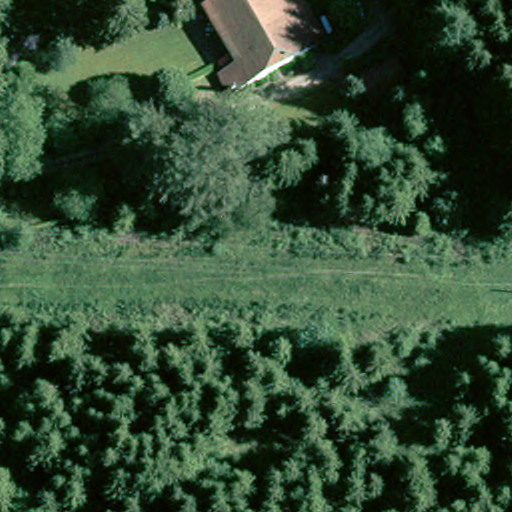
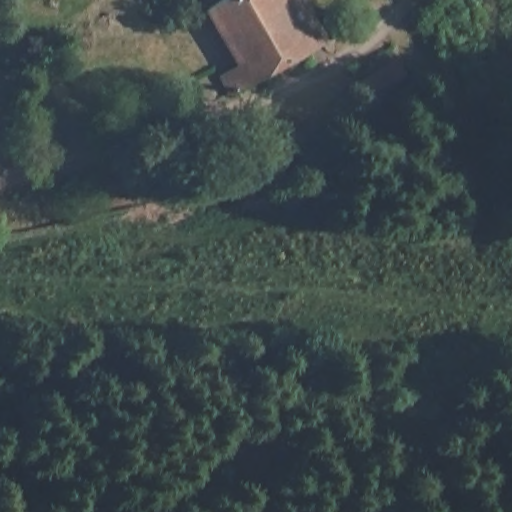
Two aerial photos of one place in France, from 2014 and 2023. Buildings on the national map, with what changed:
unchanged [(197,13),(216,0),(294,0),(322,42),(245,89),(230,96),(219,79),(236,68),(197,13)]
unchanged [(366,101),(357,85),(389,65),(400,82),(366,101)]

